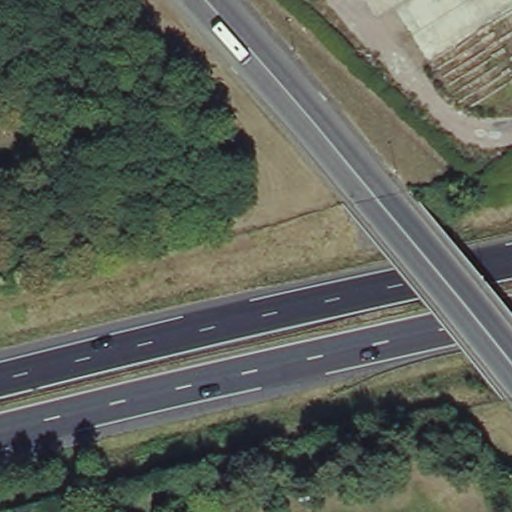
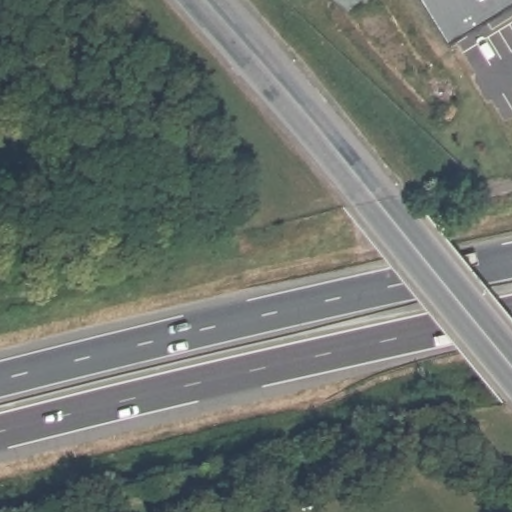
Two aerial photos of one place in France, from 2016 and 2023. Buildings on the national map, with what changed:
new [(448,40),(425,0),(512,0),(448,40)]

